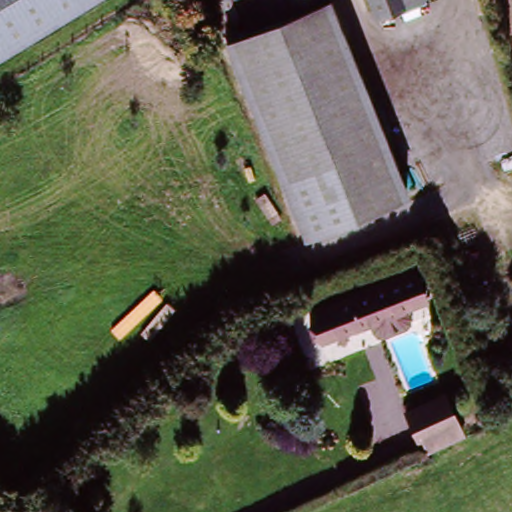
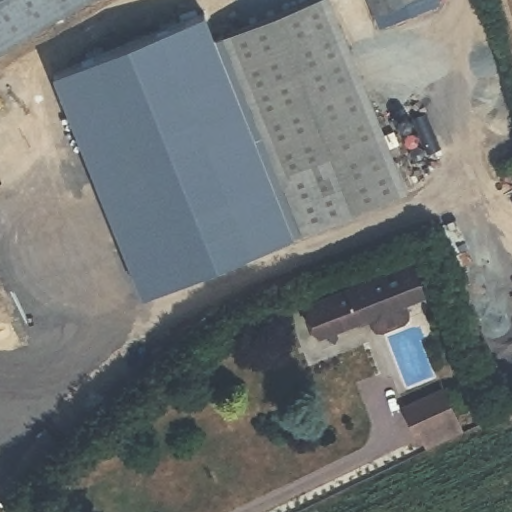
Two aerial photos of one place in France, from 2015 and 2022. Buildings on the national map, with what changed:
unchanged [(0,0),(90,0),(0,52),(0,0)]
unchanged [(330,0),(407,191),(303,232),(220,35),(244,29),(323,0),(330,0)]
unchanged [(233,0),(323,0),(244,29),(233,0)]
unchanged [(379,0),(416,0),(384,13),(379,0)]
new [(215,38),(220,35),(303,232),(295,233),(140,295),(52,72),(204,11),(215,38)]
unchanged [(407,258),(419,286),(317,332),(305,305),(407,258)]
unchanged [(422,451),(409,417),(449,400),(462,433),(422,451)]

